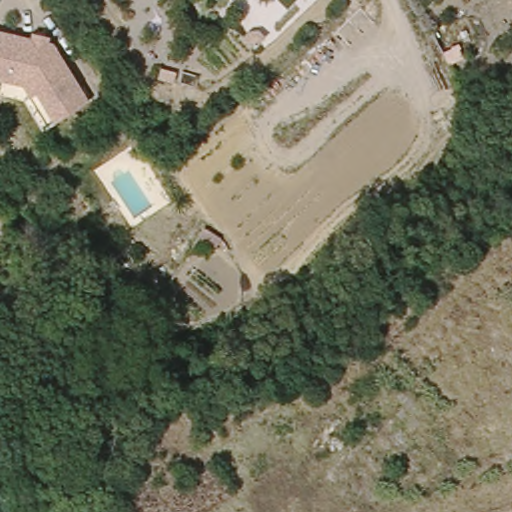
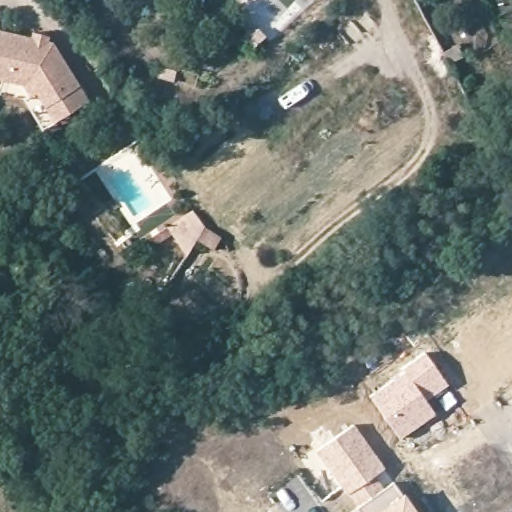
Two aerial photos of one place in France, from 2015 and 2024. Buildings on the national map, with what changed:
unchanged [(31,34),(50,38),(50,44),(54,45),(89,102),(42,134),(20,99),(0,95),(1,82),(0,82),(0,32),(29,39),(31,34)]
unchanged [(211,215),(233,234),(217,255),(195,236),(211,215)]
new [(425,351),(449,384),(427,400),(436,413),(400,440),(369,396),(425,351)]
new [(354,424),(393,481),(356,507),(314,451),(354,424)]
unchanged [(155,501),(148,480),(167,472),(176,495),(155,501)]
new [(416,512),(358,512),(356,507),(393,481),(416,512)]

